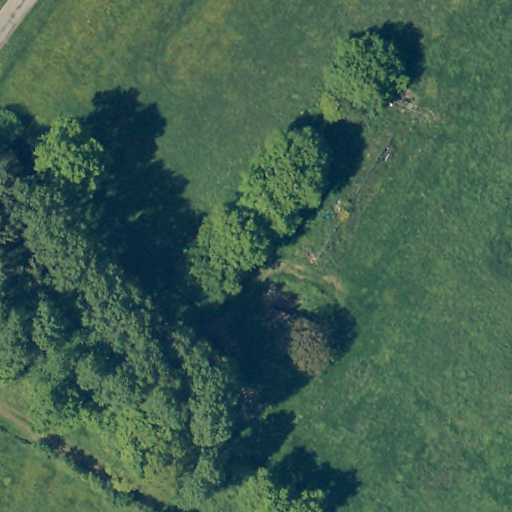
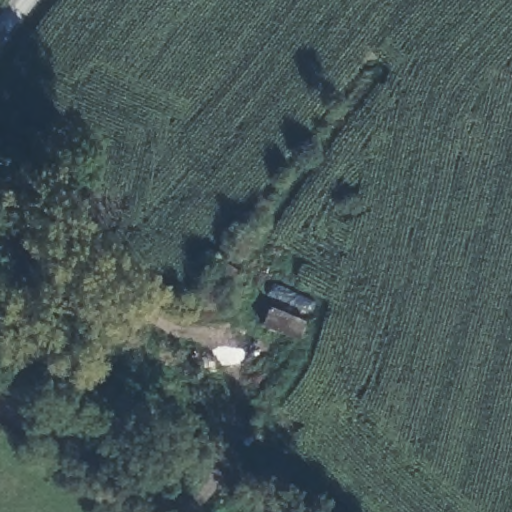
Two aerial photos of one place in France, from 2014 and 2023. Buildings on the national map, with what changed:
unchanged [(211,275),(219,263),(226,251),(246,265),(239,276),(230,288),(211,275)]
unchanged [(297,335),(262,320),(270,300),(305,316),(297,335)]

